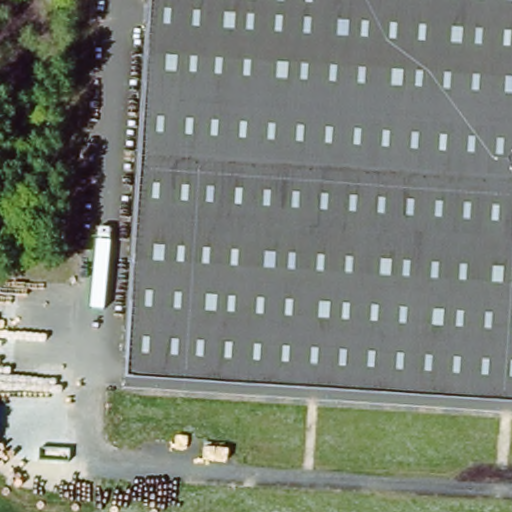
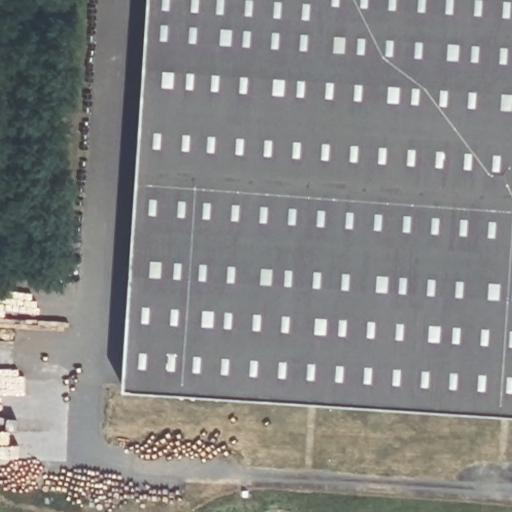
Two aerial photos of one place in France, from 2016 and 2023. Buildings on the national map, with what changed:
unchanged [(512,413),(121,395),(140,0),(512,0),(512,413)]

